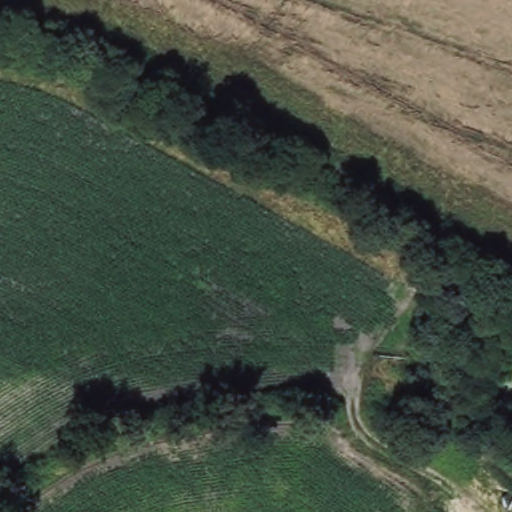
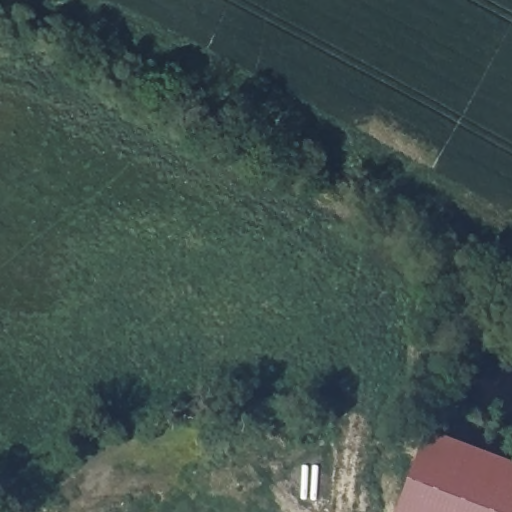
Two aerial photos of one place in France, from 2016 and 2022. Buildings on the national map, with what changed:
new [(431,431),(512,461),(512,512),(398,512),(431,431)]

